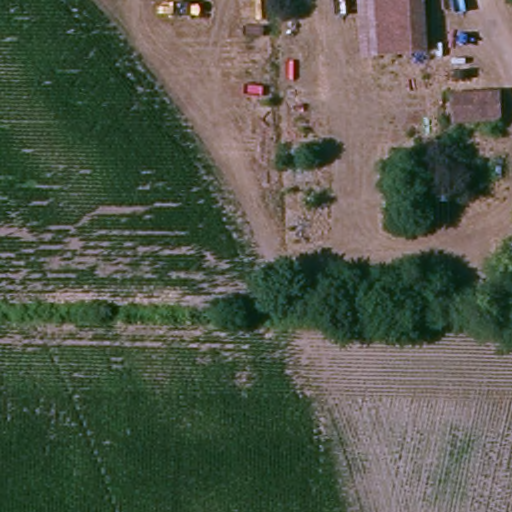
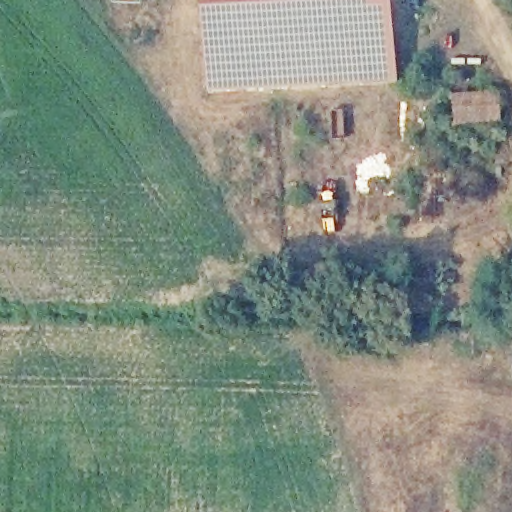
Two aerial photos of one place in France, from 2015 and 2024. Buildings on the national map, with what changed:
new [(212,90),(205,0),(394,0),(398,82),(212,90)]
demolished [(426,55),(397,55),(397,0),(425,0),(426,55)]
unchanged [(458,120),(457,95),(500,92),(501,117),(458,120)]

